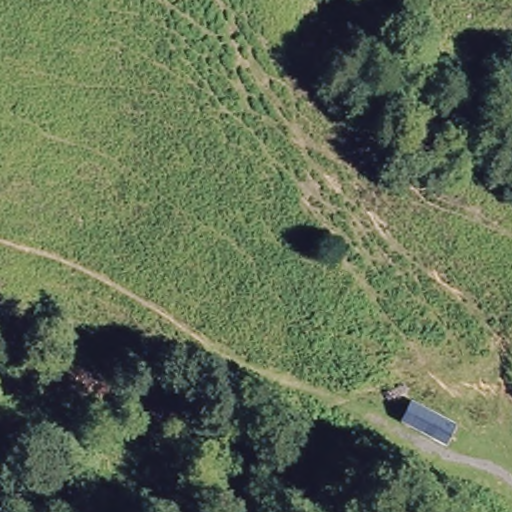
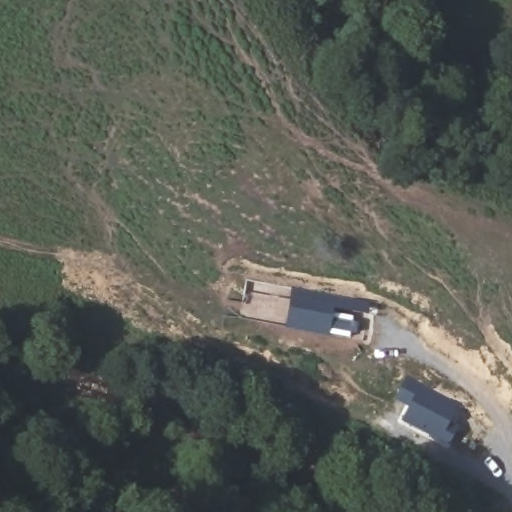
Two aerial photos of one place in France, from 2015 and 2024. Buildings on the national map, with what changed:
new [(244,290),(251,291),(254,281),(285,287),(283,294),(288,295),(282,324),(238,315),(244,290)]
new [(288,295),(290,286),(335,295),(327,335),(282,324),(288,295)]
unchanged [(463,419),(452,444),(409,426),(420,401),(463,419)]

